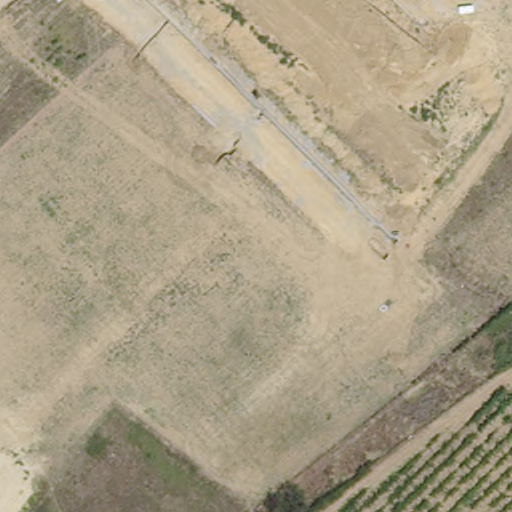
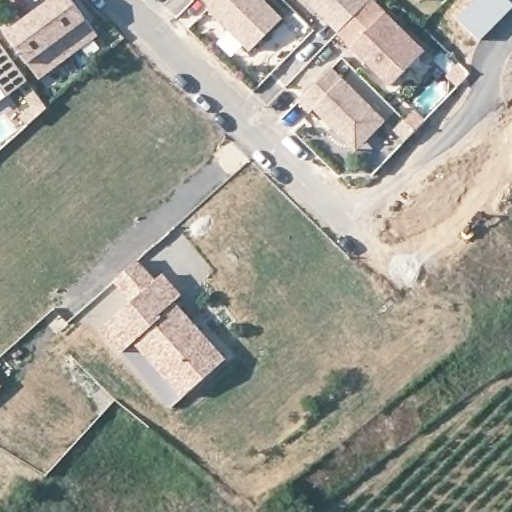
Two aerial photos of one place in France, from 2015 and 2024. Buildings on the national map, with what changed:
new [(5,32),(49,0),(74,0),(99,35),(40,80),(5,32)]
new [(283,17),(251,51),(208,8),(211,5),(205,0),(265,0),(283,17)]
new [(339,32),(307,0),(369,0),(339,32)]
new [(388,12),(425,50),(391,85),(354,47),(339,32),(369,0),(372,0),(388,12)]
new [(421,11),(410,0),(432,0),(421,11)]
new [(28,80),(6,95),(0,86),(0,43),(28,80)]
new [(387,121),(357,151),(314,108),(311,113),(299,100),(333,68),(387,121)]
new [(125,357),(103,335),(118,318),(132,305),(113,286),(134,264),(154,283),(161,277),(180,297),(173,303),(228,357),(189,397),(170,378),(136,345),(125,357)]
new [(3,387),(0,390),(0,383),(3,387)]

